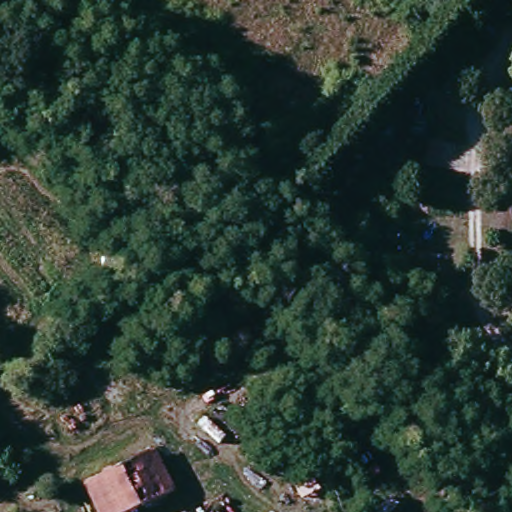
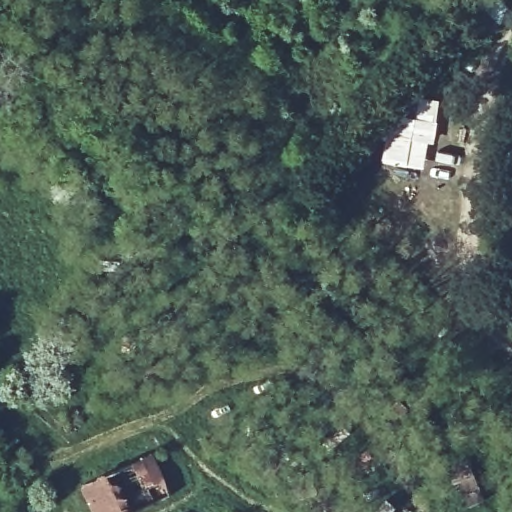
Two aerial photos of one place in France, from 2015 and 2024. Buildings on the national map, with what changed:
unchanged [(473,0),(502,0),(510,7),(498,20),(473,0)]
new [(430,140),(420,171),(382,159),(392,126),(397,127),(401,114),(413,118),(418,103),(431,107),(422,139),(430,140)]
unchanged [(128,512),(100,512),(86,479),(155,450),(175,492),(128,512)]

